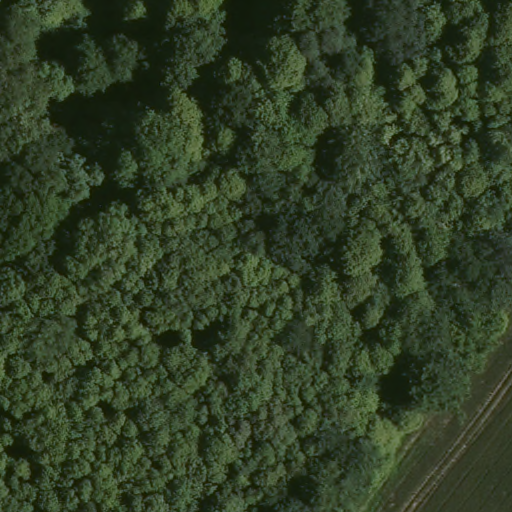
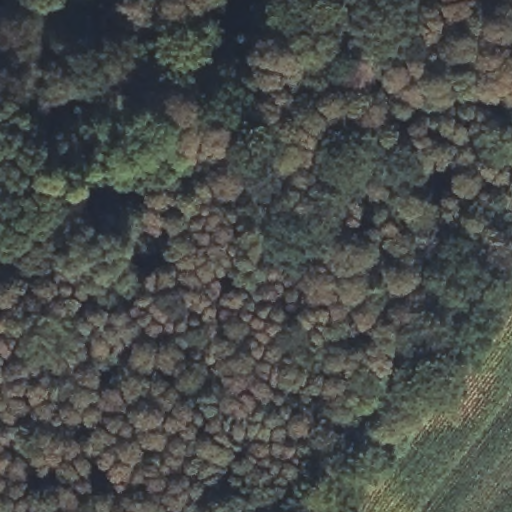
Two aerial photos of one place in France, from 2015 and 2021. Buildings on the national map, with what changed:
unchanged [(39,178),(45,187),(34,194),(28,184),(39,178)]

